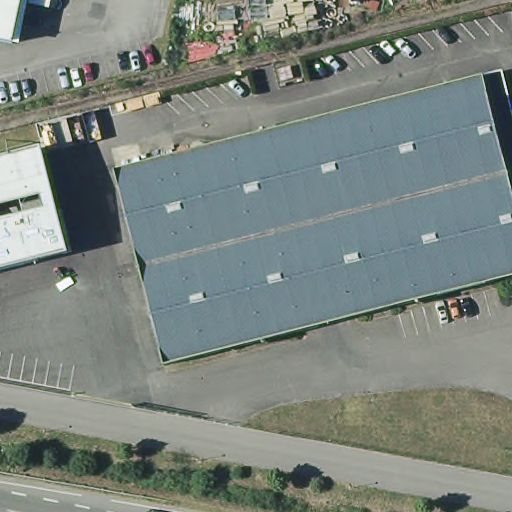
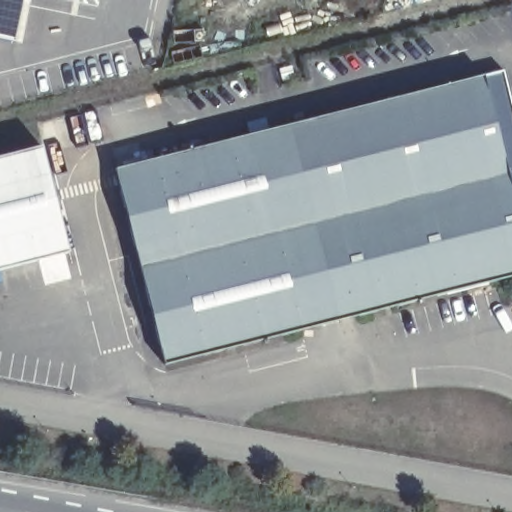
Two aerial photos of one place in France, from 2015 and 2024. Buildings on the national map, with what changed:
unchanged [(21,50),(0,45),(0,0),(33,0),(21,50)]
unchanged [(512,63),(512,124),(498,66),(512,63)]
unchanged [(284,77),(282,67),(293,65),(295,75),(284,77)]
unchanged [(512,124),(512,274),(159,362),(110,164),(498,66),(512,124)]
unchanged [(0,155),(42,142),(74,252),(0,274),(0,155)]

